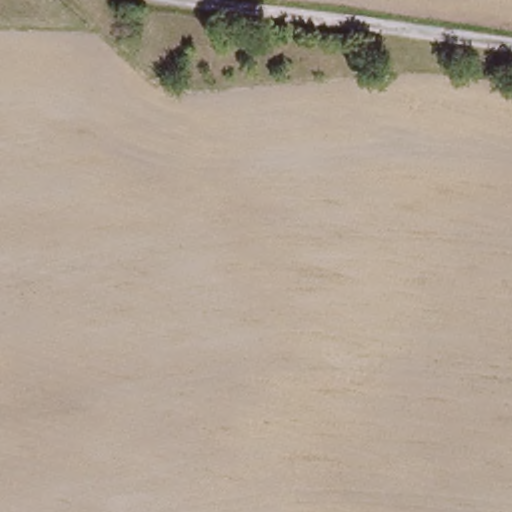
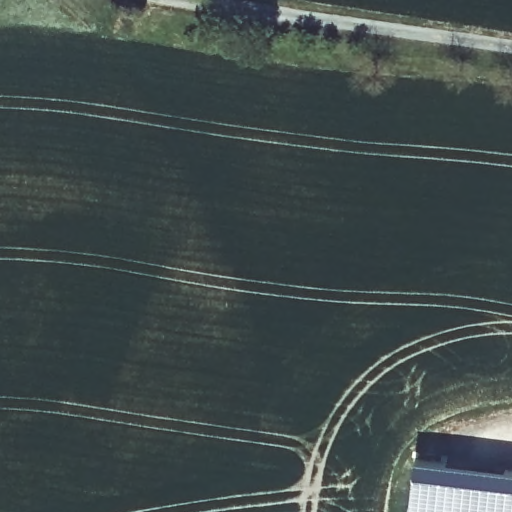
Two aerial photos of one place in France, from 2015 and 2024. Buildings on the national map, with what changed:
new [(512,468),(512,512),(409,512),(416,456),(512,468)]

